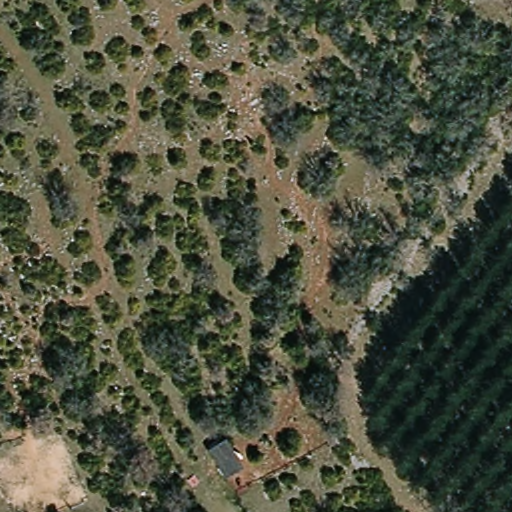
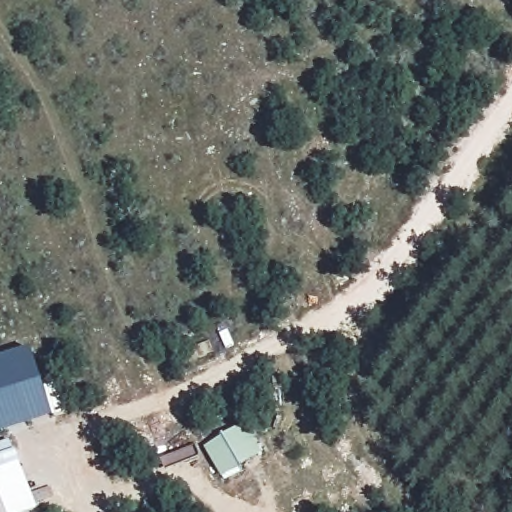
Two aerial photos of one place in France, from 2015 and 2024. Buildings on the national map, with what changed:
new [(31,348),(55,417),(0,436),(0,359),(31,348)]
new [(245,423),(264,455),(223,479),(204,448),(245,423)]
new [(14,452),(16,451),(39,510),(39,512),(0,512),(0,445),(10,441),(14,452)]
demolished [(200,460),(218,450),(233,478),(215,488),(200,460)]

